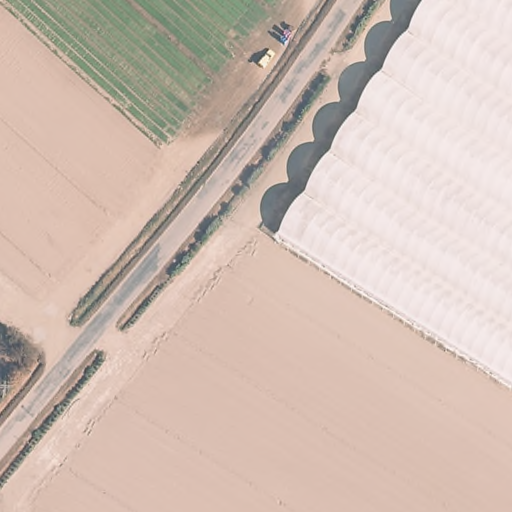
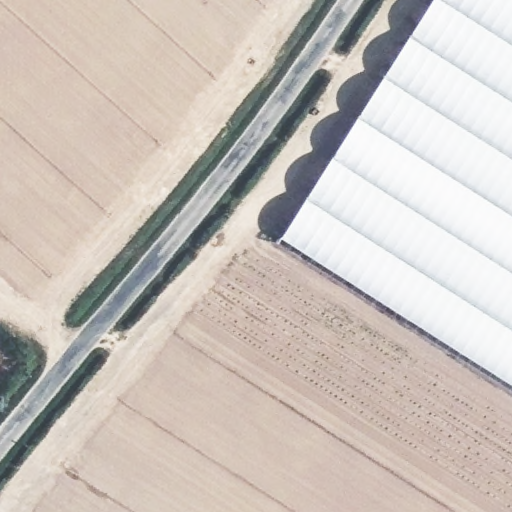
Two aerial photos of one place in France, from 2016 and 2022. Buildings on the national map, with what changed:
unchanged [(281,240),(433,0),(512,0),(512,386),(281,240)]

